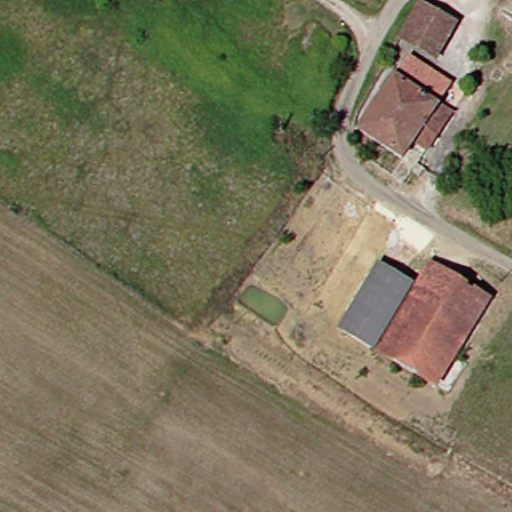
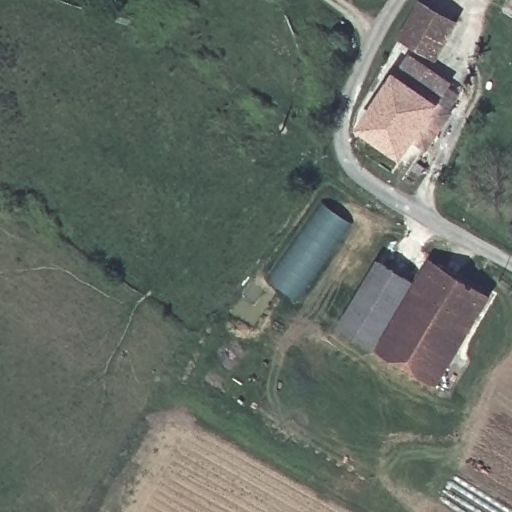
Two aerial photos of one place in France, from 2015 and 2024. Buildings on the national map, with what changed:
unchanged [(457,32),(440,63),(397,38),(414,6),(457,32)]
unchanged [(436,149),(423,142),(412,158),(365,129),(396,79),(407,63),(442,85),(432,100),(456,115),(436,149)]
new [(322,205),(350,224),(297,301),(269,279),(322,205)]
unchanged [(435,265),(487,294),(440,380),(383,347),(421,289),(435,265)]
unchanged [(421,289),(383,347),(382,351),(347,330),(368,294),(385,266),(400,276),(421,289)]

